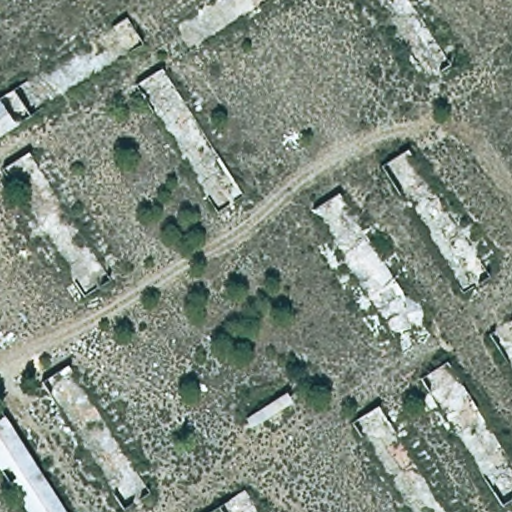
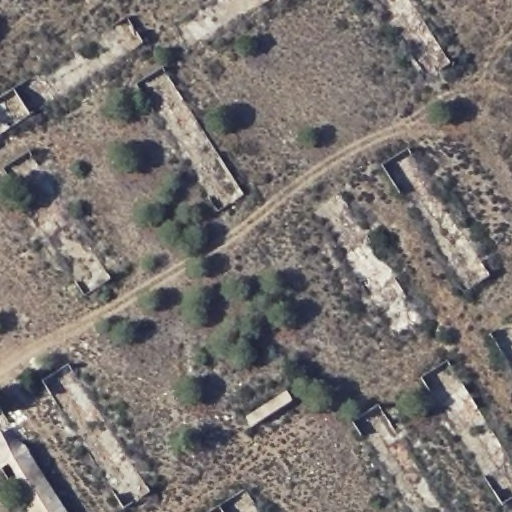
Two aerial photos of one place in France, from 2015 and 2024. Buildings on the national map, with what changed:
unchanged [(32,512),(0,467),(0,404),(4,401),(75,512),(32,512)]

